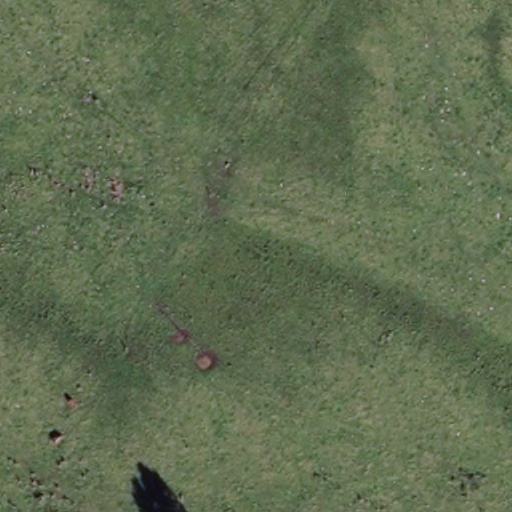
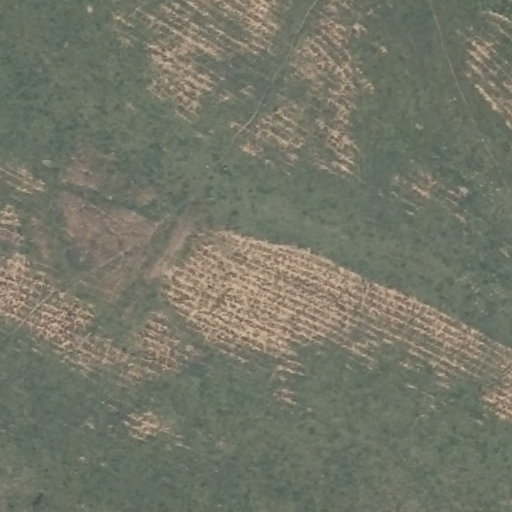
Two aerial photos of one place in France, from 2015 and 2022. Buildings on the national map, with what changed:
[]

